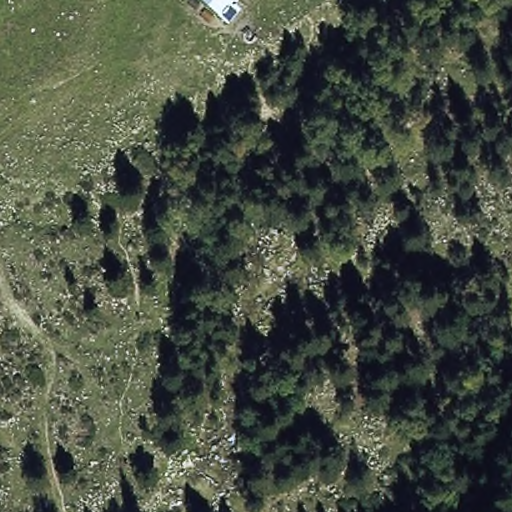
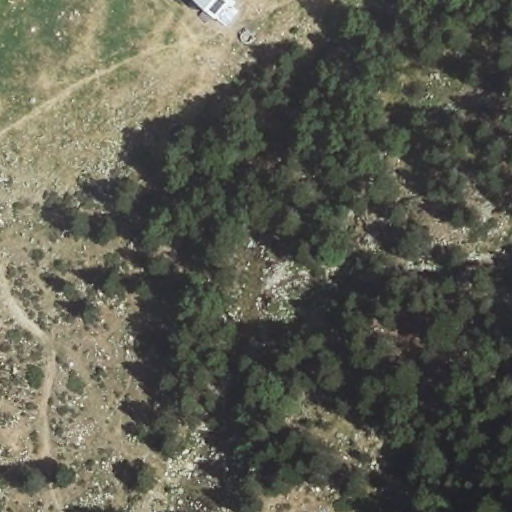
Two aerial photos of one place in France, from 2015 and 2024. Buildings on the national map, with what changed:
unchanged [(231,0),(215,20),(188,0),(231,0)]

